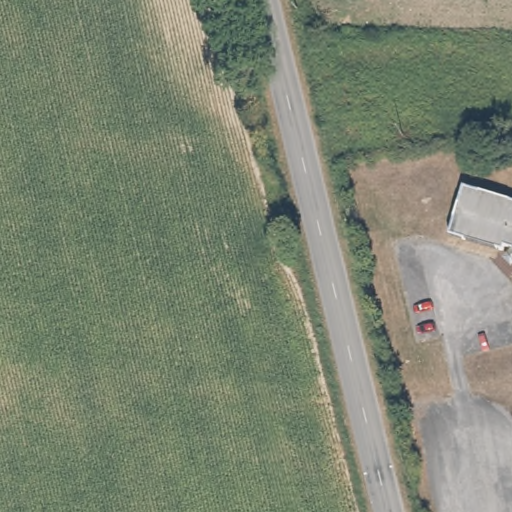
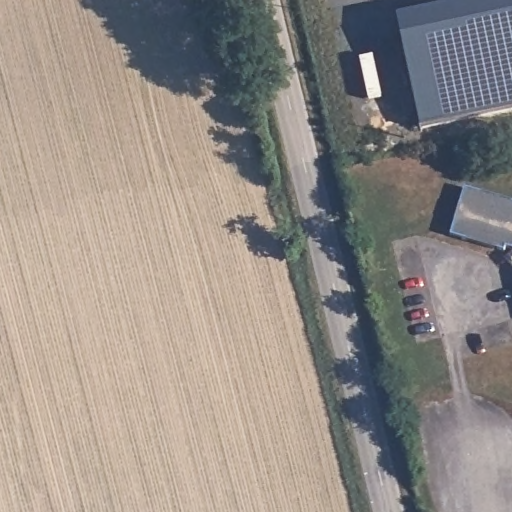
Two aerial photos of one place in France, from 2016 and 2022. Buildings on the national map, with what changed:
new [(486,0),(512,0),(512,110),(422,129),(397,19),(486,0)]
unchanged [(506,244),(502,252),(449,239),(462,192),(512,204),(512,249),(506,244)]

